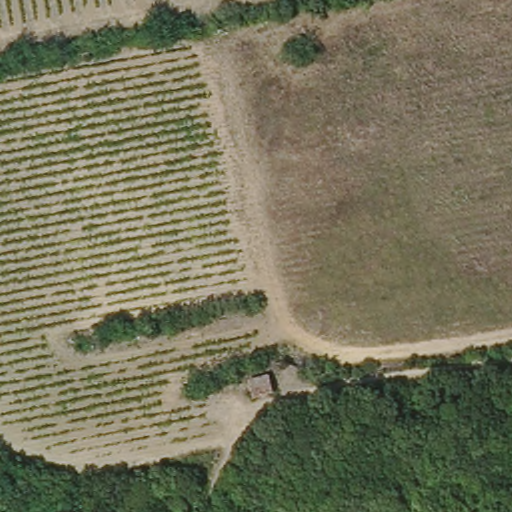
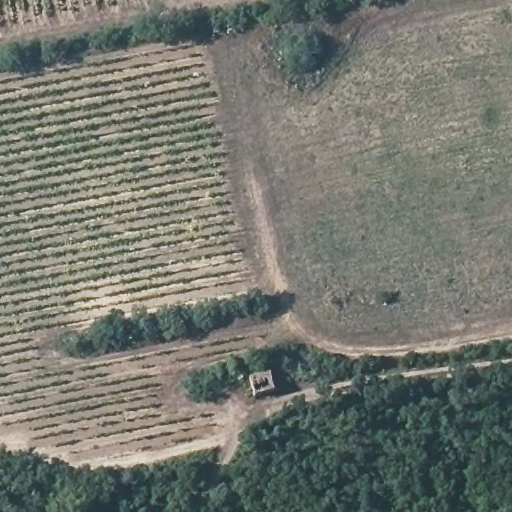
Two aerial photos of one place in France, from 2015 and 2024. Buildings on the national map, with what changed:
unchanged [(272,356),(283,376),(259,388),(248,368),(272,356)]

